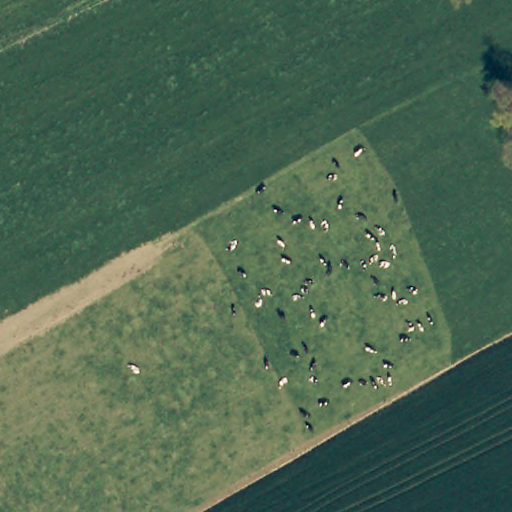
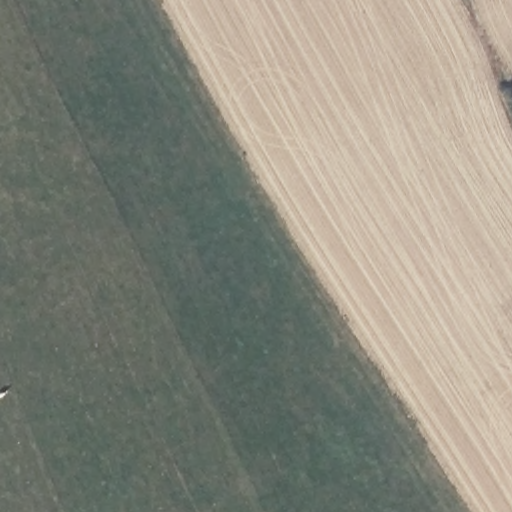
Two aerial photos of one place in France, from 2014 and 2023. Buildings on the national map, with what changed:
[]

